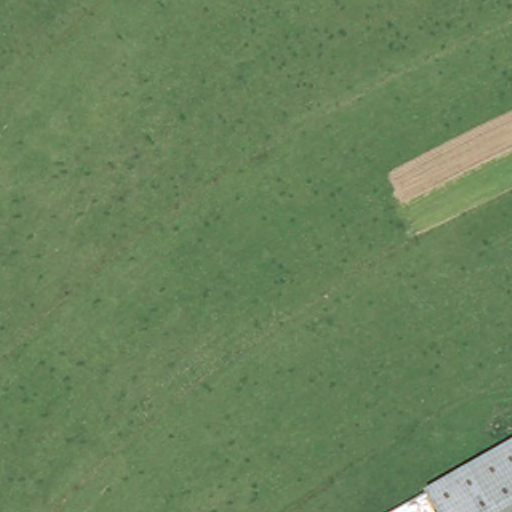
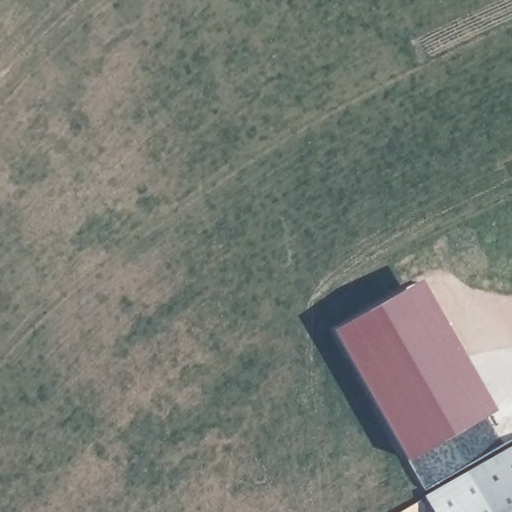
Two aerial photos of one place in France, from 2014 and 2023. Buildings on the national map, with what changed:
new [(405,460),(331,327),(419,278),(495,408),(405,460)]
unchanged [(434,512),(425,493),(512,444),(512,512),(434,512)]

